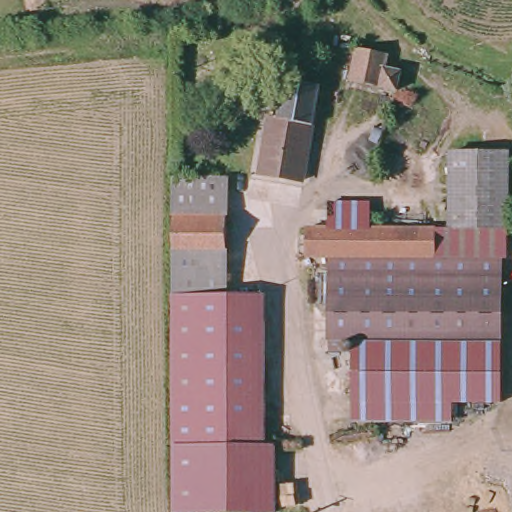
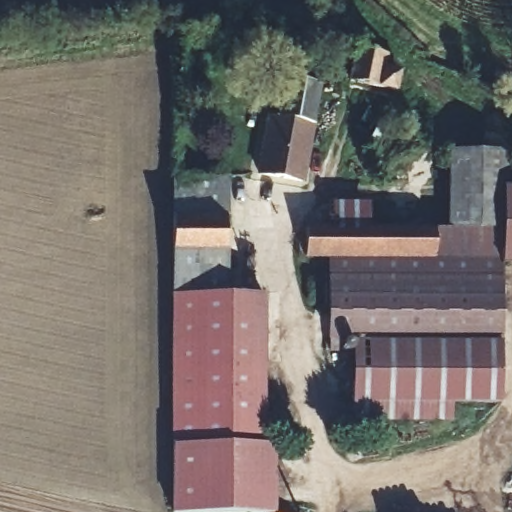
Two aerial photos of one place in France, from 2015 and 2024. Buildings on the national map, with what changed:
unchanged [(322,21),(314,123),(312,123),(308,184),(292,183),(264,182),(267,121),(287,121),(290,73),(303,74),(307,19),(322,21)]
unchanged [(387,58),(387,68),(400,69),(399,91),(351,88),(352,55),(387,58)]
unchanged [(365,199),(364,225),(435,225),(435,228),(447,227),(447,147),(510,148),(512,165),(512,259),(508,259),(502,258),(501,404),(452,403),(452,422),(349,421),(350,348),(327,348),(328,258),(304,256),(303,223),(330,222),(330,198),(365,199)]
unchanged [(227,174),(227,297),(173,295),(172,173),(227,174)]
unchanged [(173,295),(258,298),(257,444),(172,444),(173,295)]
unchanged [(172,444),(257,444),(272,444),(272,505),(172,504),(172,444)]

